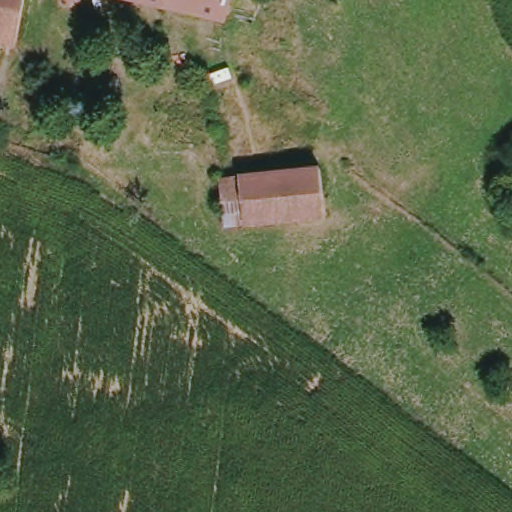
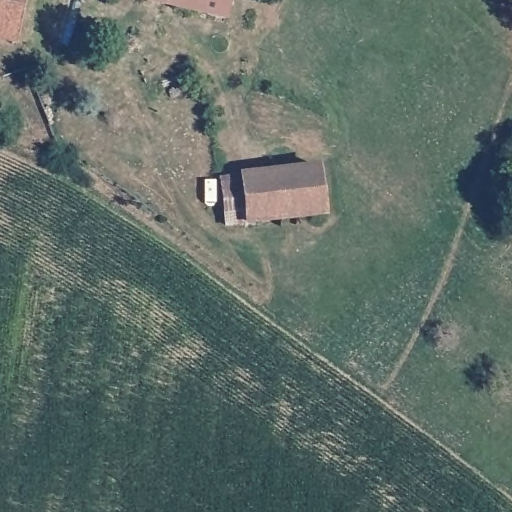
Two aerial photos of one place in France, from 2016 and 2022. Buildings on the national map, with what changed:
unchanged [(20,44),(0,41),(0,0),(26,0),(20,44)]
unchanged [(157,3),(143,0),(157,0),(157,3)]
unchanged [(236,20),(214,15),(157,3),(157,0),(240,0),(236,20)]
unchanged [(329,212),(226,225),(221,178),(323,166),(329,212)]

